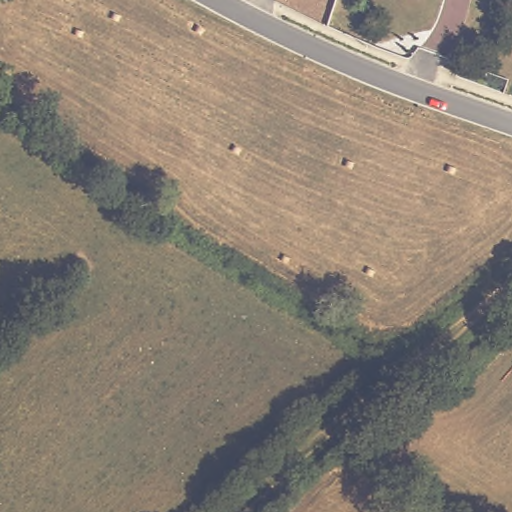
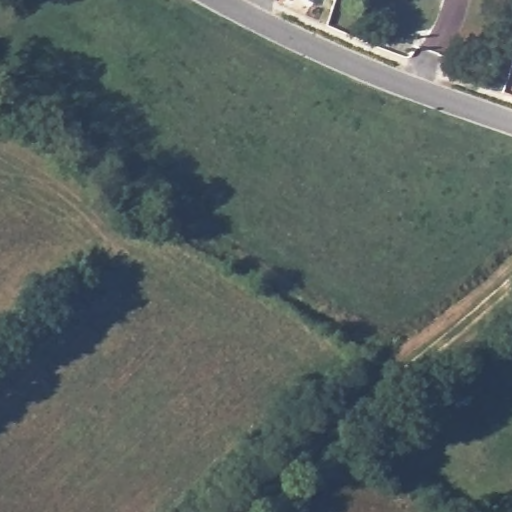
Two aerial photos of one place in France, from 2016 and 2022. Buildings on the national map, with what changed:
[]

